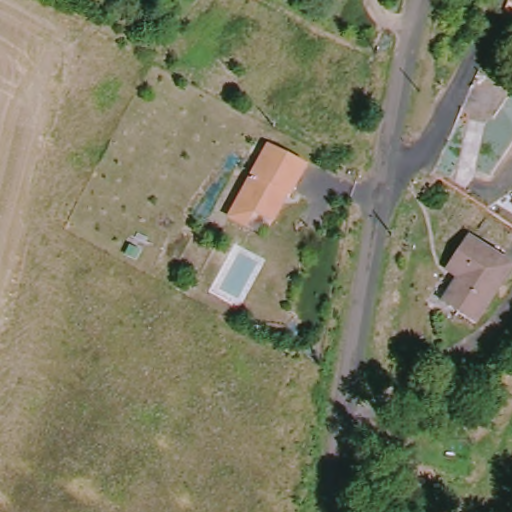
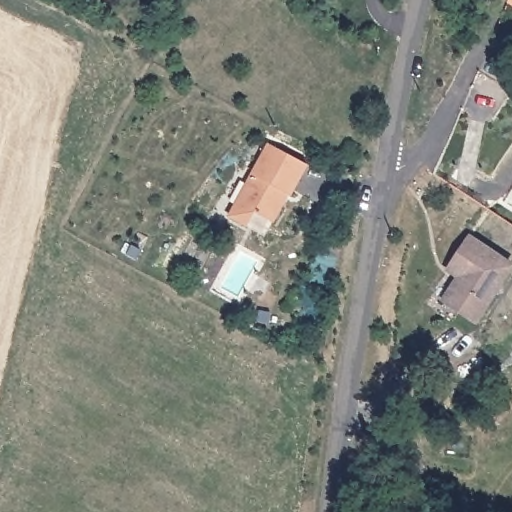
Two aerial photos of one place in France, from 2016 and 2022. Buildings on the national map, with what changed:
unchanged [(246,215),(239,228),(222,219),(258,146),(297,167),(283,198),(278,195),(264,225),(246,215)]
unchanged [(444,307),(457,280),(447,273),(465,239),(509,265),(475,326),(444,307)]

